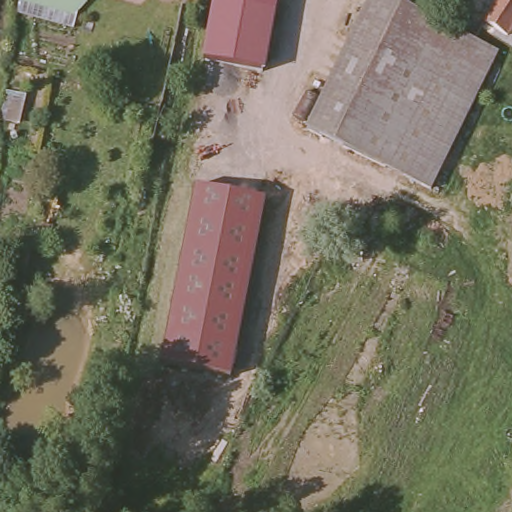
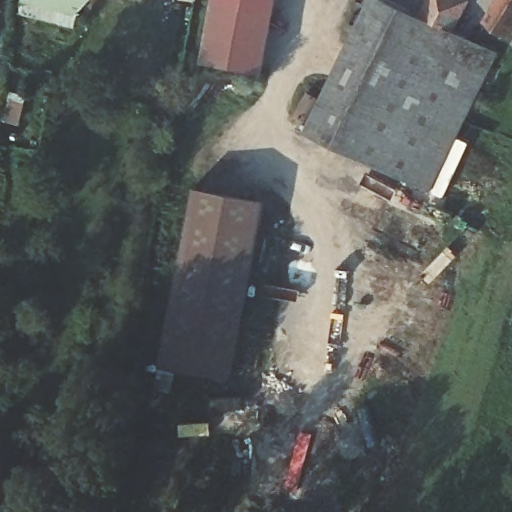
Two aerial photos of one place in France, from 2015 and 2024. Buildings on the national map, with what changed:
unchanged [(72,17),(19,0),(92,0),(72,17)]
unchanged [(264,76),(204,63),(216,0),(278,0),(264,76)]
unchanged [(373,0),(375,0),(496,57),(431,195),(308,134),(343,63),(373,0)]
unchanged [(486,31),(504,0),(512,0),(512,37),(508,45),(486,31)]
unchanged [(266,201),(231,381),(161,366),(196,187),(266,201)]

